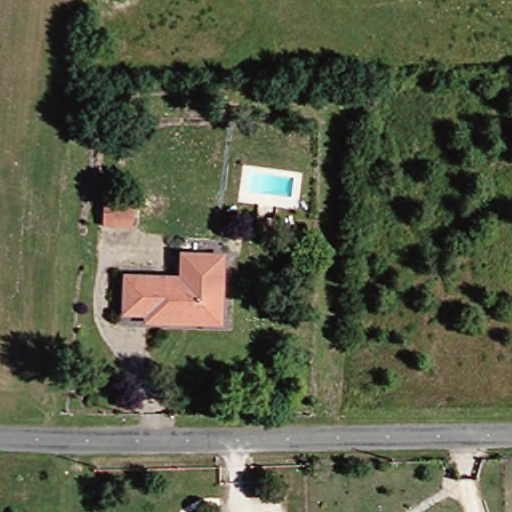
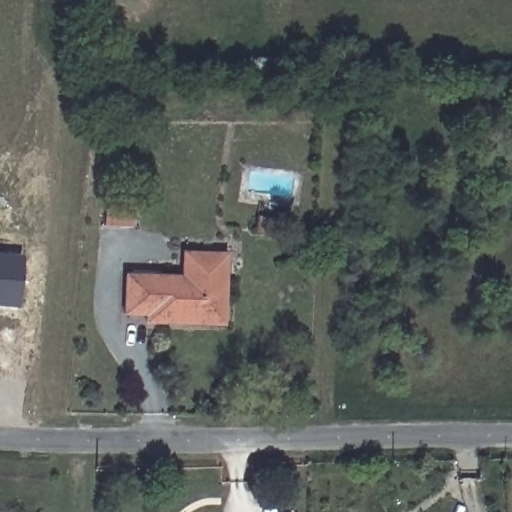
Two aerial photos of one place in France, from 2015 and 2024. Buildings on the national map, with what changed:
unchanged [(122,179),(149,180),(147,206),(121,205),(122,179)]
unchanged [(267,200),(287,202),(285,214),(266,211),(267,200)]
new [(18,309),(0,308),(0,255),(21,256),(18,309)]
unchanged [(186,325),(149,325),(150,315),(127,315),(128,277),(183,280),(185,256),(225,258),(222,318),(222,327),(186,325)]

